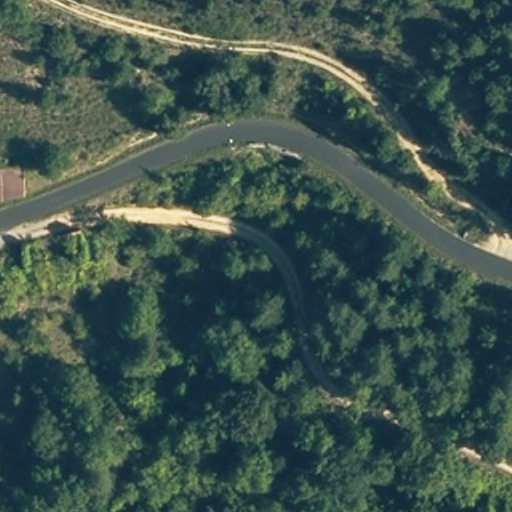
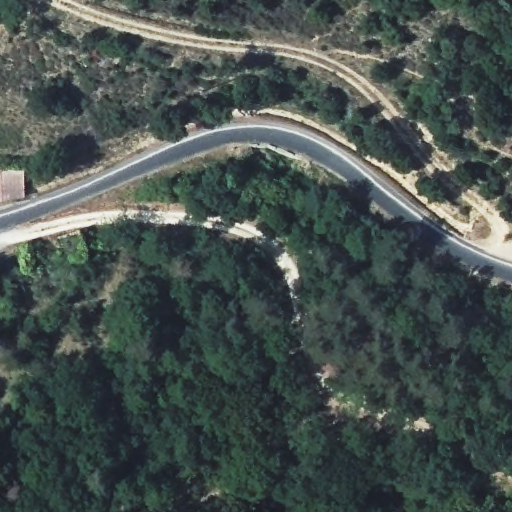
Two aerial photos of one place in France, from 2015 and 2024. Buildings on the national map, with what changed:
unchanged [(27,167),(26,196),(0,201),(0,165),(27,167)]

